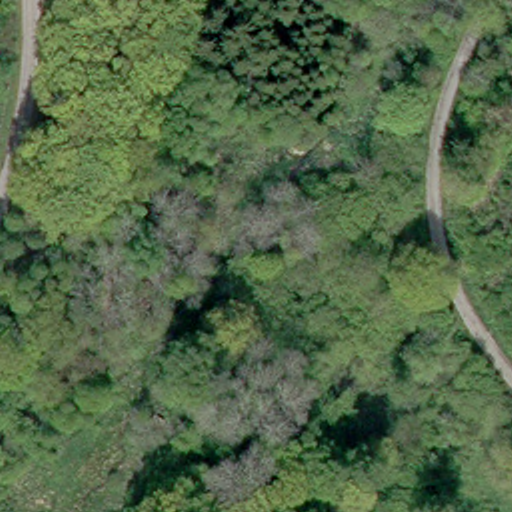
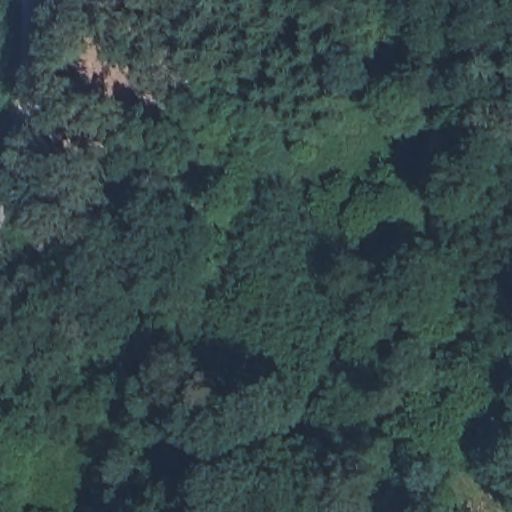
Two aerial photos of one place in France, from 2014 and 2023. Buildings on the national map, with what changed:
unchanged [(166,421),(159,428),(151,420),(157,413),(166,421)]

